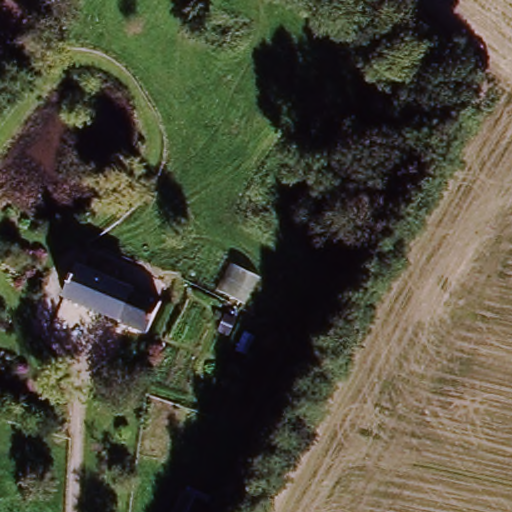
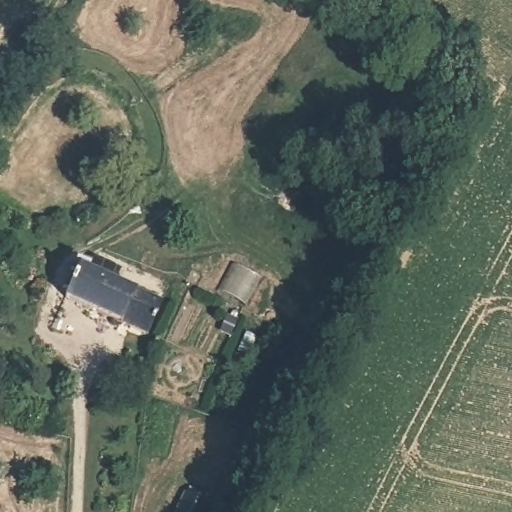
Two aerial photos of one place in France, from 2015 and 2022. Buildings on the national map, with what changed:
unchanged [(66,310),(76,278),(89,284),(95,270),(128,285),(124,295),(167,313),(152,345),(66,310)]
unchanged [(181,461),(211,476),(193,512),(189,512),(163,498),(181,461)]

